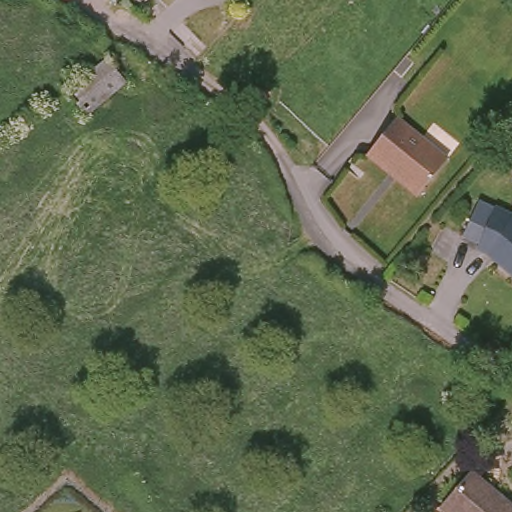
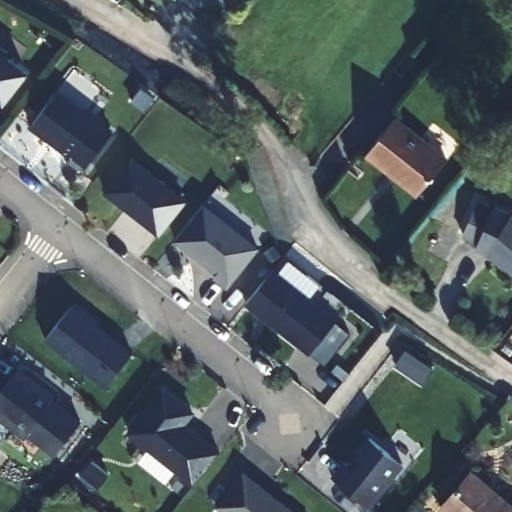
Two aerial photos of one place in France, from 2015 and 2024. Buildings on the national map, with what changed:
new [(8,52),(5,56),(26,73),(0,106),(0,46),(8,52)]
demolished [(97,60),(125,84),(80,116),(58,88),(97,60)]
new [(112,133),(80,174),(66,163),(70,157),(30,126),(57,91),(112,133)]
unchanged [(398,183),(393,179),(390,182),(368,162),(398,127),(426,150),(398,183)]
unchanged [(426,150),(449,170),(418,206),(401,191),(405,188),(398,183),(426,150)]
new [(131,159),(185,201),(160,233),(146,222),(145,224),(105,193),(131,159)]
new [(203,205),(258,248),(226,288),(214,277),(217,273),(175,240),(203,205)]
unchanged [(498,265),(487,254),(474,248),(475,246),(460,240),(473,207),(490,215),(491,213),(510,222),(512,224),(512,284),(509,281),(495,269),(498,265)]
new [(272,269),(336,320),(310,354),(246,303),(272,269)]
new [(70,306),(131,354),(105,387),(45,340),(70,306)]
new [(19,370),(53,398),(50,402),(57,408),(58,406),(80,424),(55,456),(28,435),(25,439),(0,420),(0,393),(19,370)]
new [(163,389),(193,412),(183,424),(220,453),(195,485),(128,433),(163,389)]
new [(345,462),(349,465),(355,458),(354,456),(369,437),(402,464),(368,507),(332,478),(345,462)]
unchanged [(495,489),(512,506),(512,512),(450,512),(440,502),(467,471),(491,493),(495,489)]
new [(280,502),(292,512),(223,512),(216,507),(243,473),(271,495),(280,502)]

